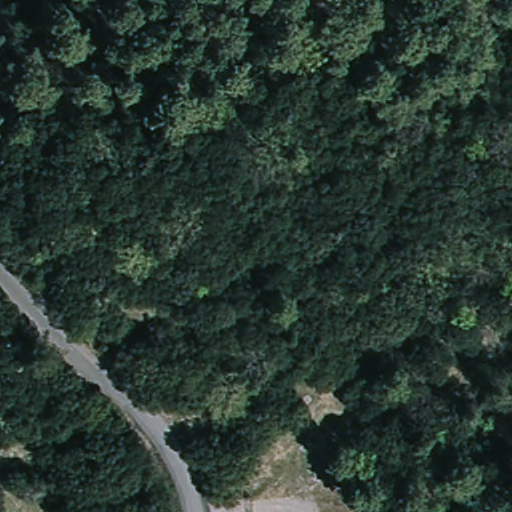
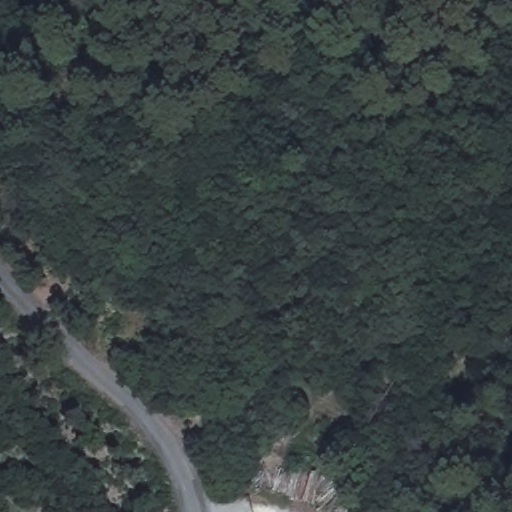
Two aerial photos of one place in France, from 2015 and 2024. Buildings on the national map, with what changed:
unchanged [(483,512),(448,512),(467,495),(483,512)]

